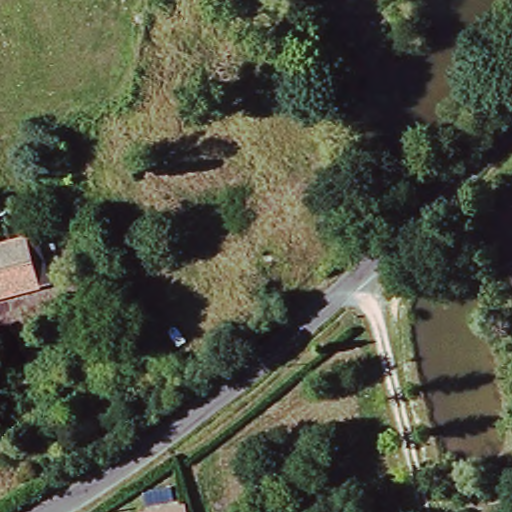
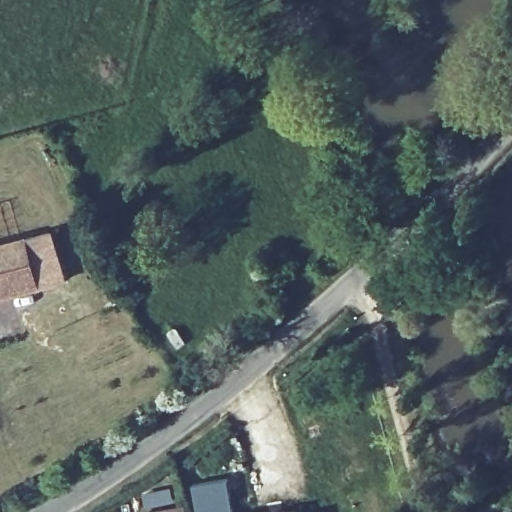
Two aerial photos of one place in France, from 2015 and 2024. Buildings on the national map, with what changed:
unchanged [(39,235),(54,283),(0,299),(0,247),(39,235)]
demolished [(178,280),(182,296),(171,299),(157,303),(152,287),(178,280)]
new [(227,477),(233,512),(196,512),(190,483),(227,477)]
unchanged [(179,506),(180,512),(147,512),(179,506)]
new [(295,510),(296,512),(276,512),(295,510)]

